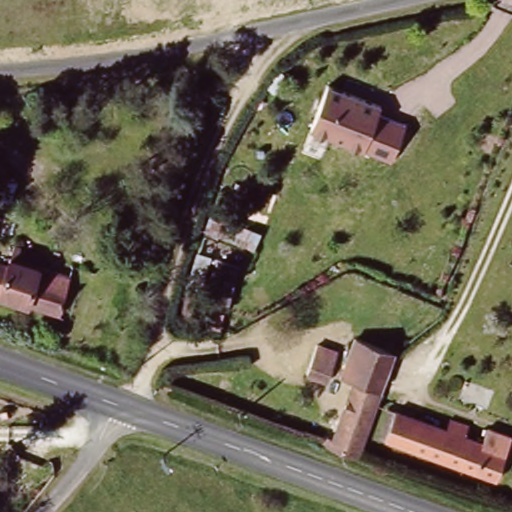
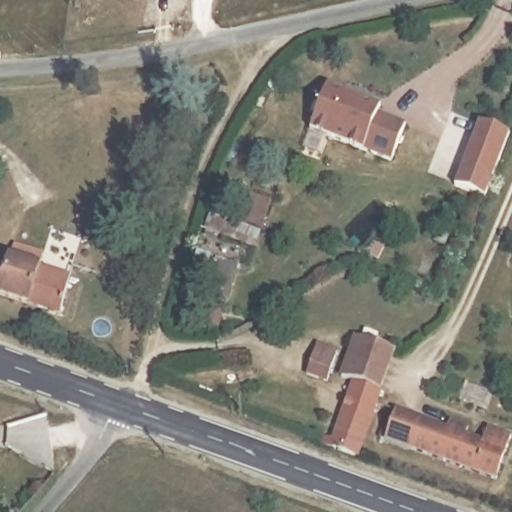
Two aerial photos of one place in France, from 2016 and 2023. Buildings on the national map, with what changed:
unchanged [(381,104),(378,111),(405,121),(390,160),(363,146),(361,150),(310,127),(328,83),(381,104)]
new [(487,199),(457,187),(482,123),(512,135),(487,199)]
unchanged [(228,305),(225,305),(220,326),(194,318),(201,295),(185,288),(196,250),(238,265),(228,305)]
unchanged [(50,263),(49,268),(79,279),(63,320),(0,296),(0,266),(17,272),(24,254),(50,263)]
unchanged [(352,375),(332,370),(346,334),(392,350),(383,382),(352,375)]
unchanged [(315,343),(330,349),(321,370),(306,365),(315,343)]
unchanged [(320,441),(326,420),(336,423),(352,375),(383,382),(356,453),(320,441)]
unchanged [(488,425),(512,434),(512,437),(496,480),(382,439),(397,398),(410,403),(405,414),(446,429),(450,420),(467,427),(465,435),(482,441),(488,425)]

